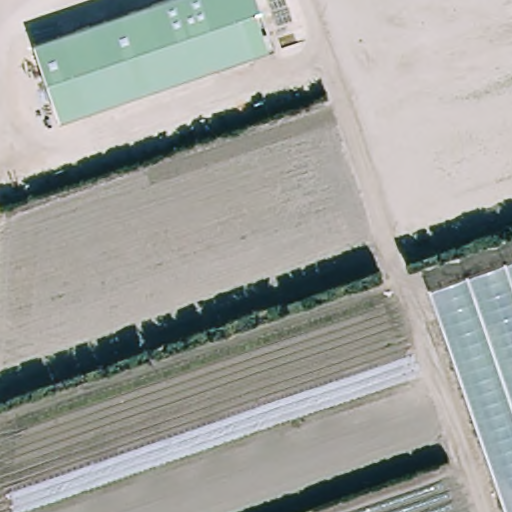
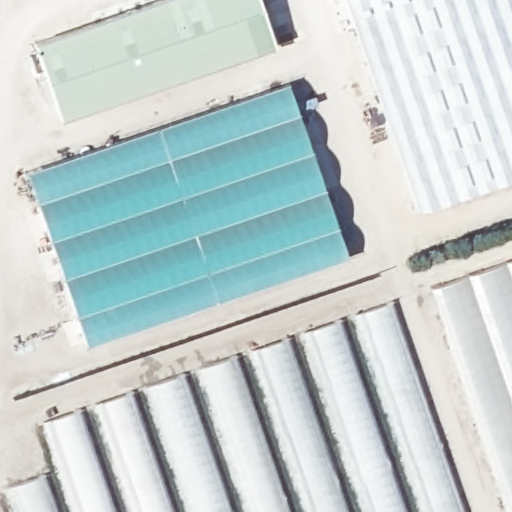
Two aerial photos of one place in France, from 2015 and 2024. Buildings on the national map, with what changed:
unchanged [(60,119),(34,40),(153,0),(232,0),(251,53),(60,119)]
new [(232,0),(257,0),(274,45),(251,53),(232,0)]
new [(419,208),(345,0),(512,0),(512,176),(419,208)]
new [(26,173),(286,84),(347,259),(87,346),(26,173)]
unchanged [(429,286),(512,258),(512,512),(506,512),(429,286)]
new [(391,301),(464,512),(422,512),(354,314),(391,301)]
new [(301,332),(339,319),(404,512),(363,512),(301,332)]
new [(286,338),(345,512),(306,512),(249,350),(286,338)]
new [(198,367),(233,356),(288,512),(248,512),(198,367)]
new [(229,512),(189,512),(146,386),(181,374),(229,512)]
new [(94,405),(128,391),(171,512),(132,512),(94,405)]
new [(112,512),(73,512),(41,423),(77,409),(112,512)]
new [(6,488),(43,475),(55,512),(15,512),(6,488)]

